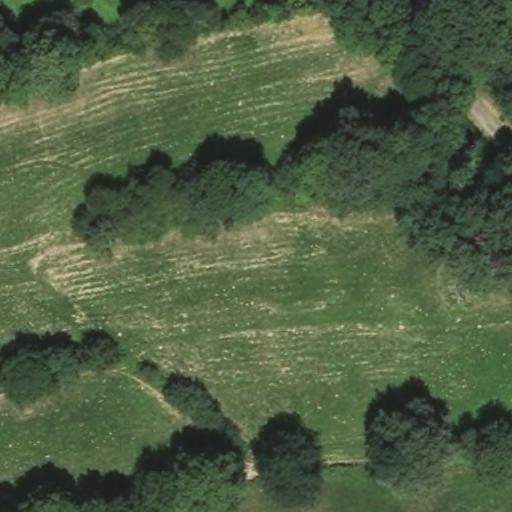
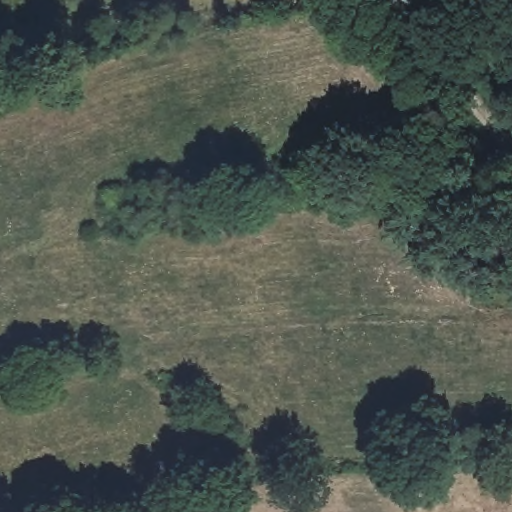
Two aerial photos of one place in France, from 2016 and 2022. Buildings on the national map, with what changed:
[]

